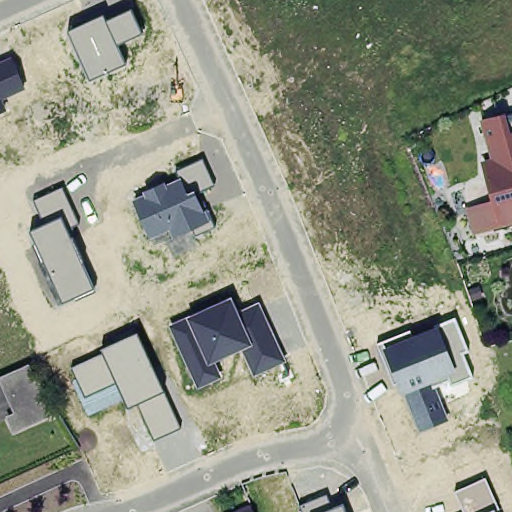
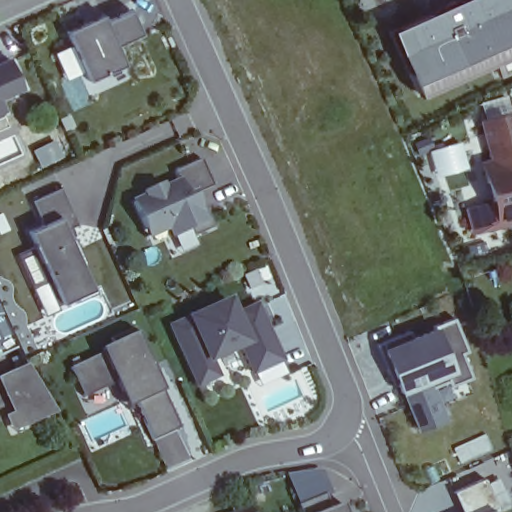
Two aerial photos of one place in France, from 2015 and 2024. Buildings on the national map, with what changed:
new [(460,0),(461,5),(473,0),(512,0),(512,69),(498,75),(493,63),(421,95),(394,34),(448,10),(446,6),(460,0)]
unchanged [(103,15),(106,21),(131,10),(142,34),(117,45),(125,64),(90,80),(68,31),(103,15)]
unchanged [(25,89),(2,99),(7,110),(0,113),(0,62),(11,57),(25,89)]
unchanged [(469,215),(495,208),(488,186),(483,168),(494,165),(483,127),(512,119),(512,225),(500,228),(475,235),(469,215)]
new [(461,144),(467,168),(440,176),(433,152),(461,144)]
unchanged [(144,195),(142,192),(165,182),(165,183),(166,185),(180,178),(176,170),(201,159),(213,184),(195,193),(203,210),(207,208),(215,227),(195,236),(193,229),(173,238),(169,229),(150,238),(132,200),(144,195)]
unchanged [(45,225),(34,199),(62,187),(78,225),(77,225),(67,230),(93,289),(62,303),(30,231),(45,225)]
unchanged [(186,317),(231,296),(238,311),(260,302),(286,360),(253,375),(241,349),(215,361),(221,377),(197,388),(169,325),(186,317)]
unchanged [(410,330),(413,335),(437,326),(455,319),(467,351),(463,353),(472,377),(452,384),(450,380),(435,386),(448,419),(421,430),(405,393),(400,394),(395,381),(391,383),(377,344),(410,330)]
unchanged [(136,333),(163,392),(180,428),(153,440),(137,403),(127,407),(116,383),(85,397),(71,367),(101,349),(136,333)]
unchanged [(11,422),(24,417),(18,404),(15,399),(11,401),(2,382),(30,369),(44,392),(57,416),(50,419),(17,435),(11,422)]
unchanged [(485,477),(500,508),(495,511),(496,512),(464,512),(455,491),(485,477)]
unchanged [(326,494),(332,508),(342,504),(345,512),(302,512),(300,505),(326,494)]
unchanged [(249,507),(251,512),(239,512),(249,507)]

